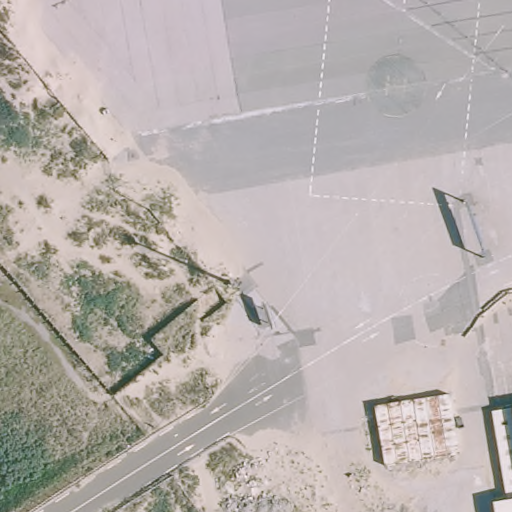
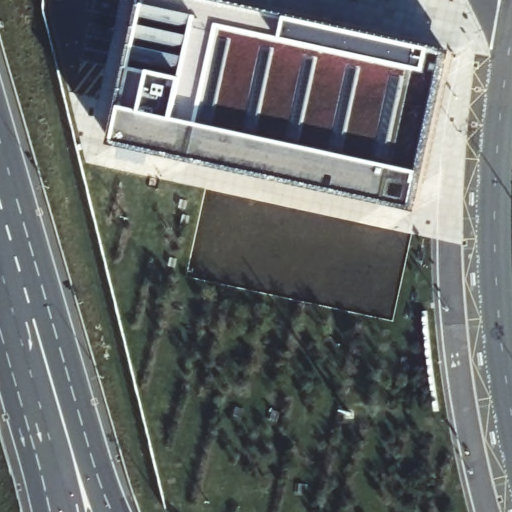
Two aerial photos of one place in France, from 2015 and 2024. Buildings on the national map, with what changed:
new [(453,60),(421,220),(117,154),(147,0),(192,0),(453,60)]
new [(130,2),(121,0),(131,0),(130,2)]
demolished [(512,407),(512,512),(494,512),(478,412),(512,407)]

